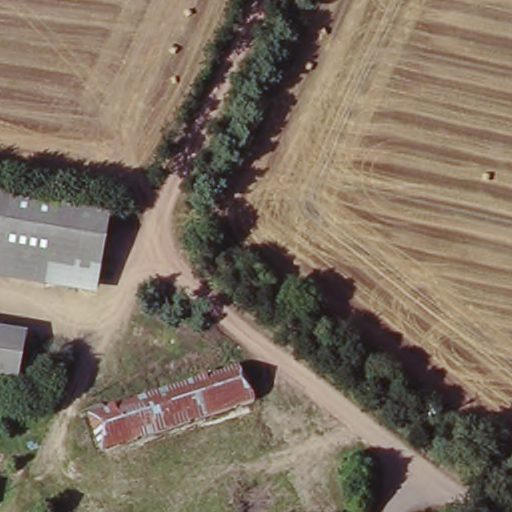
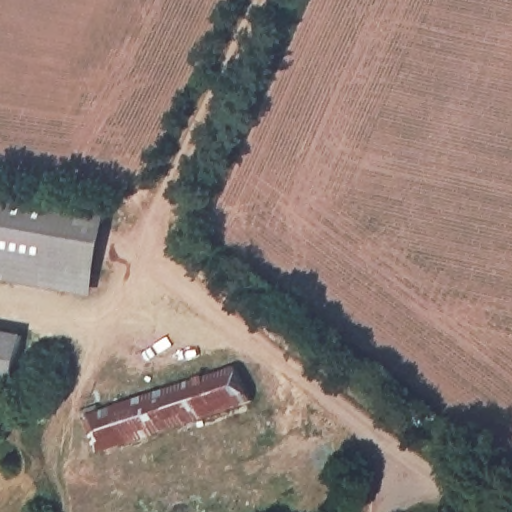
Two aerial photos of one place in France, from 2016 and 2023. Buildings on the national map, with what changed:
unchanged [(92,281),(50,275),(0,266),(0,203),(107,221),(92,281)]
unchanged [(48,291),(0,284),(0,266),(50,275),(48,291)]
unchanged [(15,390),(0,387),(0,334),(27,340),(15,390)]
unchanged [(93,453),(81,418),(243,368),(251,400),(246,402),(252,425),(230,436),(129,465),(120,445),(104,450),(93,453)]

